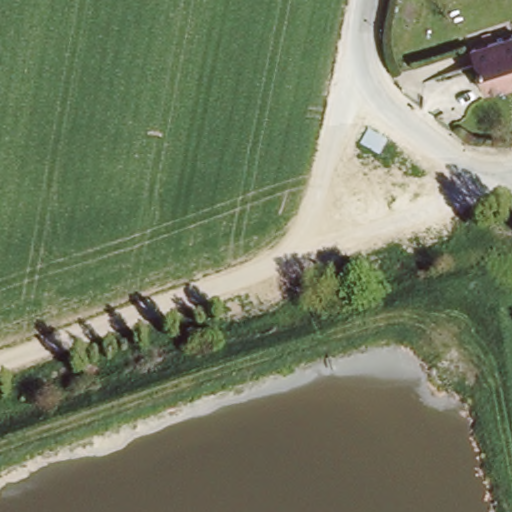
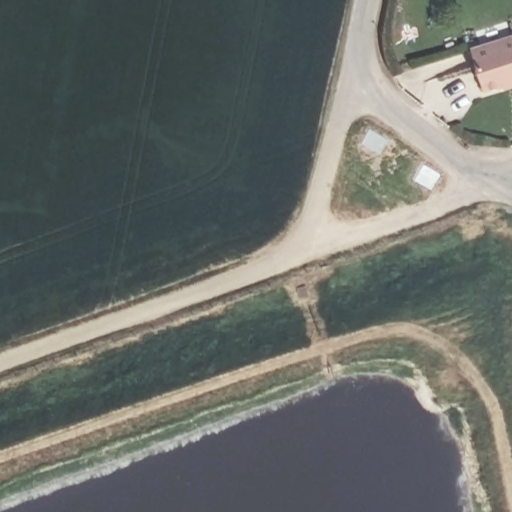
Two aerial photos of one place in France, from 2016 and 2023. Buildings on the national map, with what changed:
unchanged [(512,82),(482,90),(469,47),(512,35),(512,83),(512,82)]

